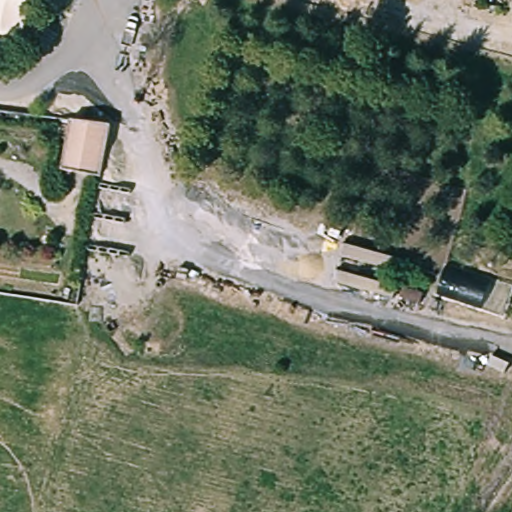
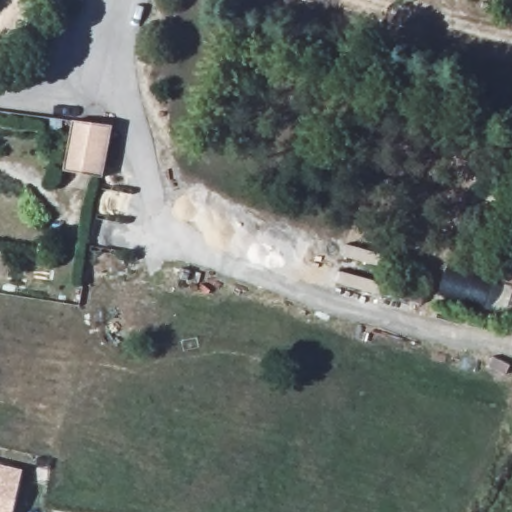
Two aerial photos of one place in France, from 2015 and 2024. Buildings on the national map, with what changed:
unchanged [(21,40),(0,37),(0,0),(26,0),(21,40)]
unchanged [(67,173),(72,119),(118,125),(107,179),(67,173)]
new [(13,512),(0,512),(0,466),(23,471),(13,512)]

